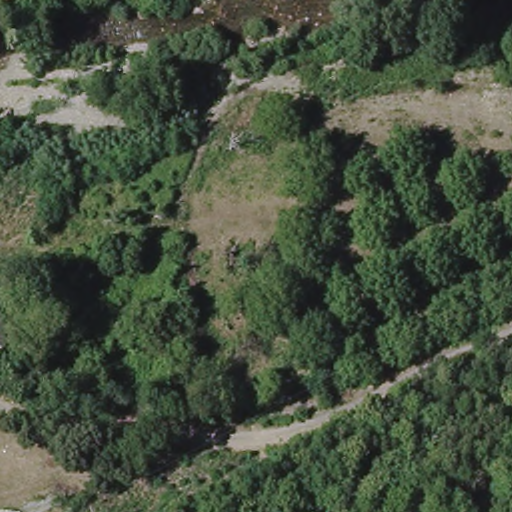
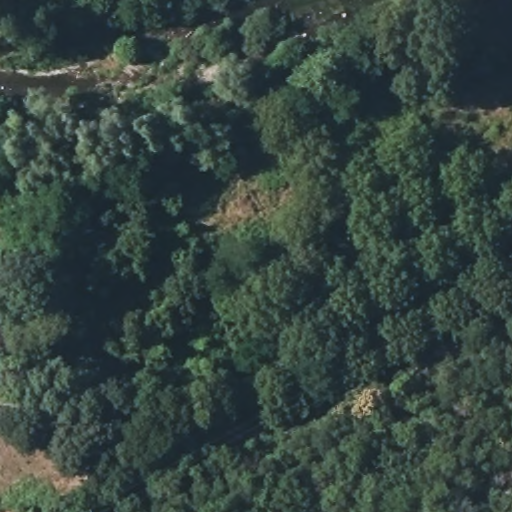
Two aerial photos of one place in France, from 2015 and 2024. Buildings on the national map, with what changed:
unchanged [(23,342),(0,361),(0,315),(23,342)]

